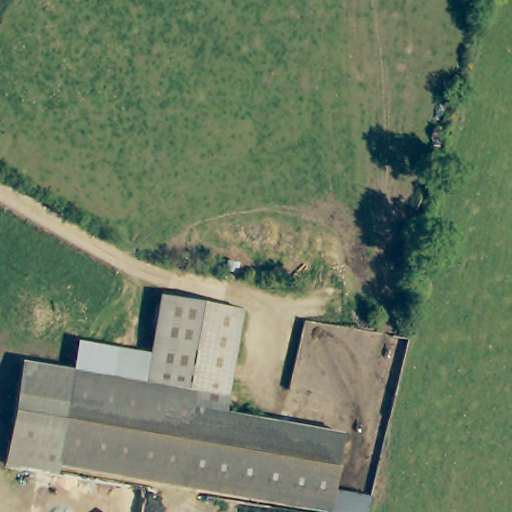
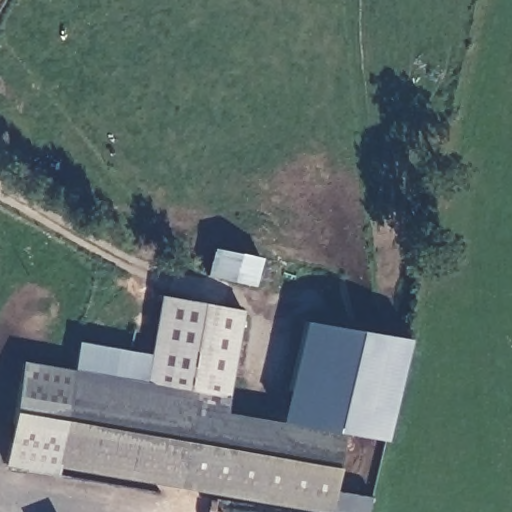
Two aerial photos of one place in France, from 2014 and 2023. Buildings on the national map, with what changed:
new [(262,257),(255,286),(206,275),(211,247),(262,257)]
unchanged [(194,404),(145,396),(160,305),(187,310),(188,305),(203,308),(202,312),(240,318),(222,422),(192,417),(194,404)]
new [(300,331),(404,348),(382,451),(341,444),(280,432),(300,331)]
new [(145,396),(72,383),(78,350),(150,361),(145,396)]
unchanged [(55,484),(5,475),(21,374),(72,383),(59,462),(55,484)]
unchanged [(189,416),(179,480),(179,481),(59,462),(72,383),(145,396),(194,404),(192,417),(189,416)]
unchanged [(222,422),(341,444),(330,508),(179,480),(189,416),(192,417),(222,422)]
new [(334,486),(370,492),(366,512),(348,512),(330,508),(333,491),(334,486)]

